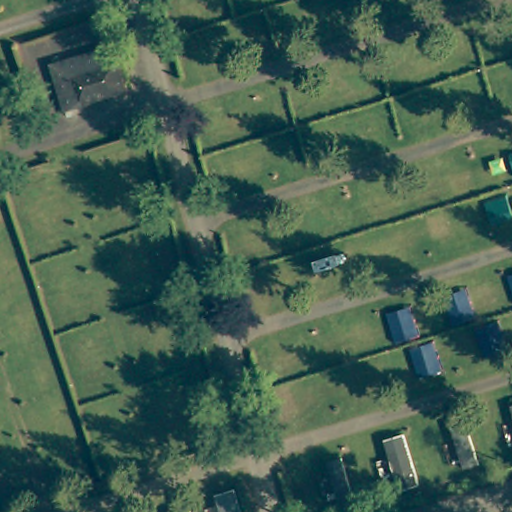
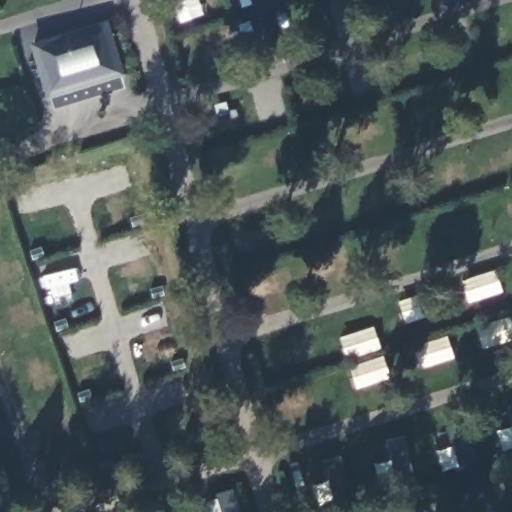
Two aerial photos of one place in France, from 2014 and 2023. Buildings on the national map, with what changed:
new [(108,20),(127,87),(54,110),(31,44),(108,20)]

